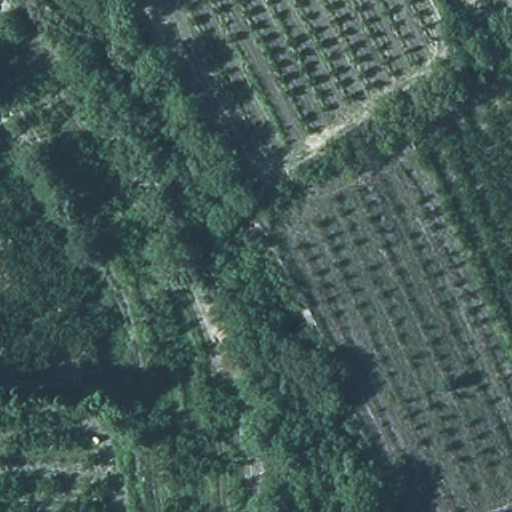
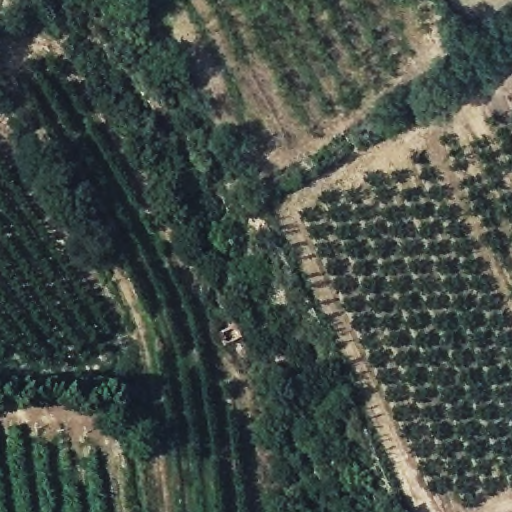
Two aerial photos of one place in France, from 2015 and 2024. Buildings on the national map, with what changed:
unchanged [(222,348),(213,337),(230,325),(239,337),(222,348)]

